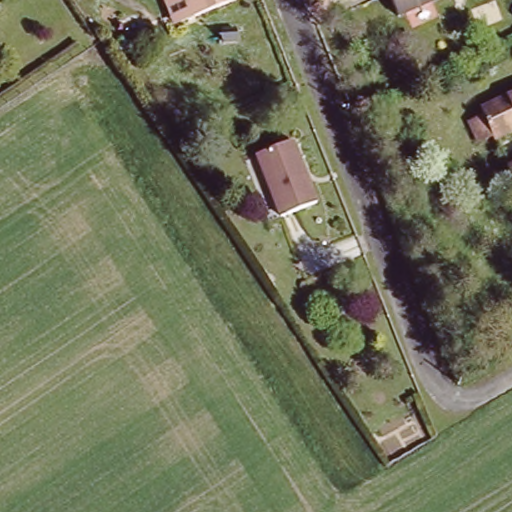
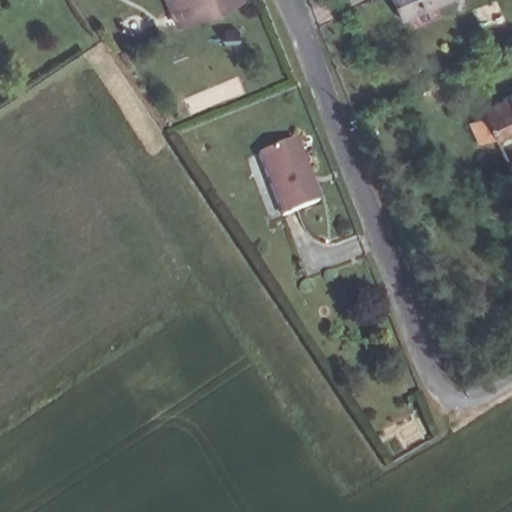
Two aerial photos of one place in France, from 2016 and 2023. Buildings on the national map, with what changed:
unchanged [(171,21),(163,0),(189,0),(194,12),(171,21)]
unchanged [(189,0),(227,0),(194,12),(189,0)]
unchanged [(390,0),(423,0),(395,12),(390,0)]
unchanged [(241,25),(242,35),(231,36),(230,26),(241,25)]
unchanged [(477,137),(462,106),(505,87),(512,85),(512,121),(477,137)]
unchanged [(290,139),(315,195),(279,211),(257,152),(290,139)]
unchanged [(510,191),(500,169),(512,163),(512,190),(510,191)]

